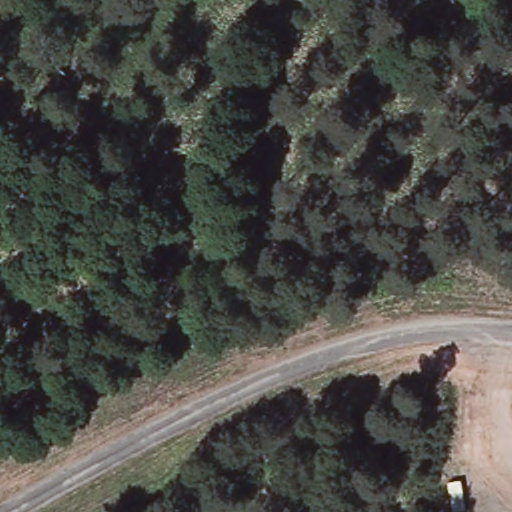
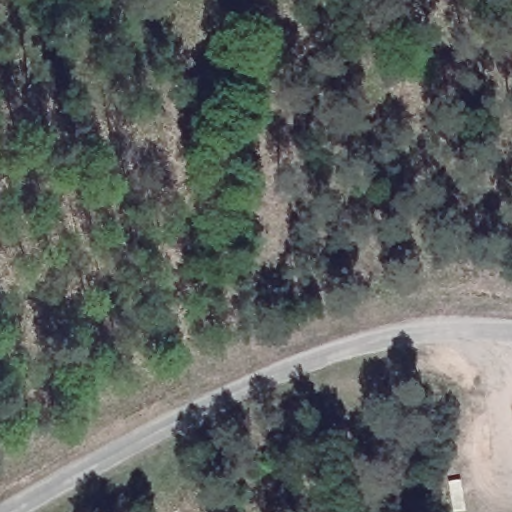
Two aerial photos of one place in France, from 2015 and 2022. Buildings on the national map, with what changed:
unchanged [(88,452),(41,479),(32,467),(82,440),(88,452)]

